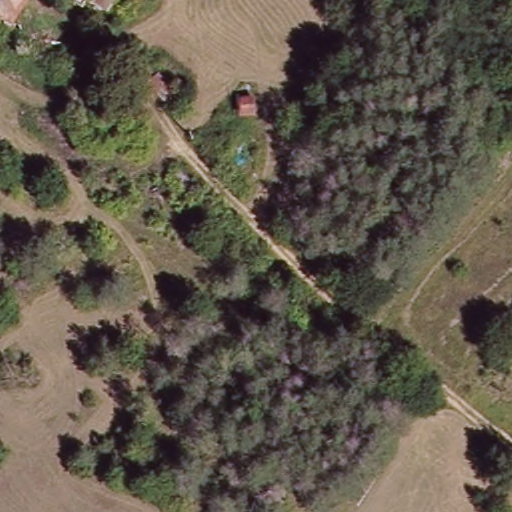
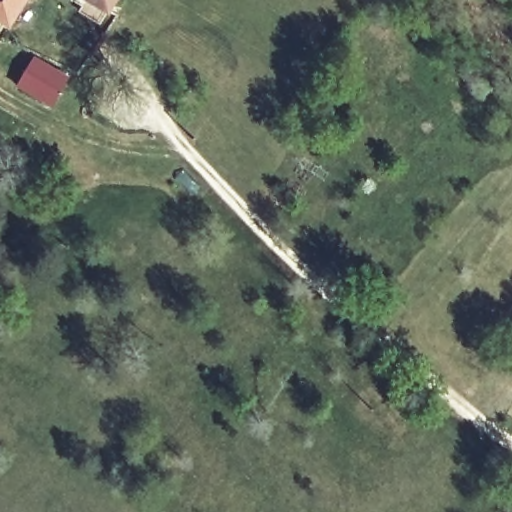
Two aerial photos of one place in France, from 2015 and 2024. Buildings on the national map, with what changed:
unchanged [(0,23),(0,0),(31,0),(12,31),(0,23)]
unchanged [(77,0),(114,0),(104,16),(77,0)]
new [(17,88),(36,57),(72,77),(53,109),(17,88)]

